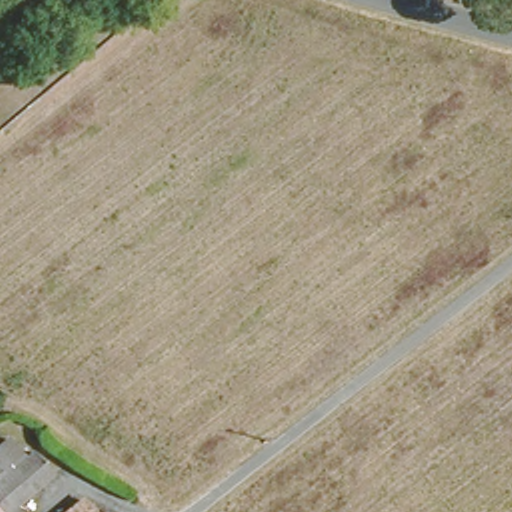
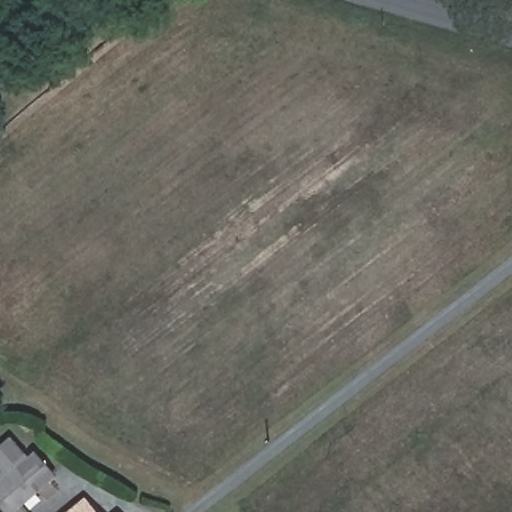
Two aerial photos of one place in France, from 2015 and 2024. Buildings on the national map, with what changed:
unchanged [(2,512),(0,512),(0,438),(8,445),(39,474),(2,512)]
unchanged [(53,512),(80,489),(100,512),(53,512)]
unchanged [(126,512),(110,512),(119,505),(126,512)]
unchanged [(42,512),(39,512),(40,510),(42,512)]

